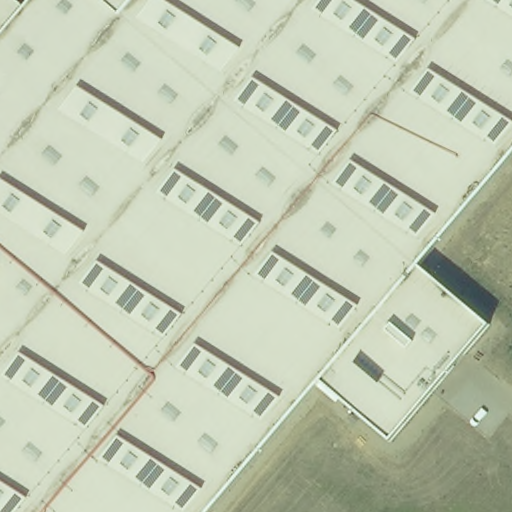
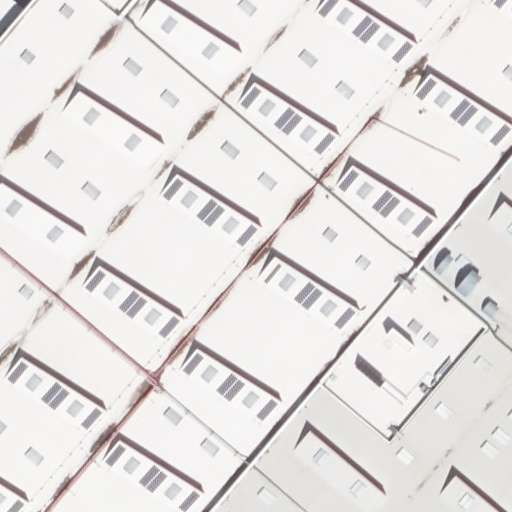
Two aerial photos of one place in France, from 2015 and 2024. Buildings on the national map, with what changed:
unchanged [(424,266),(494,326),(395,443),(325,384),(216,512),(0,512),(0,43),(36,0),(512,0),(512,162),(424,266)]
new [(216,512),(325,384),(395,443),(494,326),(424,266),(512,162),(512,512),(216,512)]

